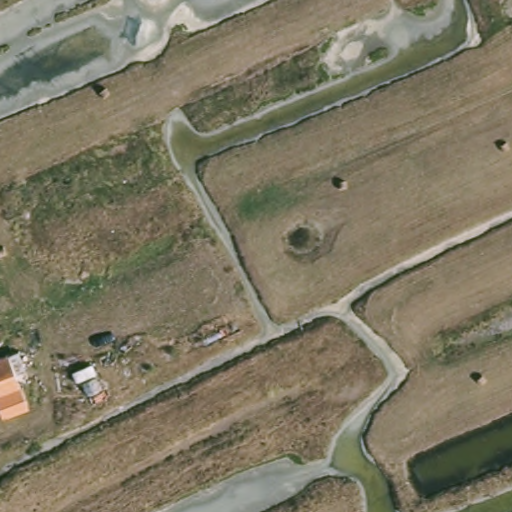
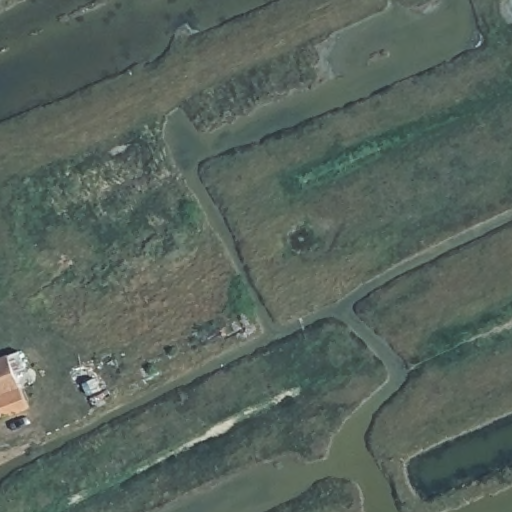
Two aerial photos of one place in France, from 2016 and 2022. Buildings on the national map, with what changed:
unchanged [(0,414),(0,360),(21,351),(48,405),(5,422),(0,414)]

